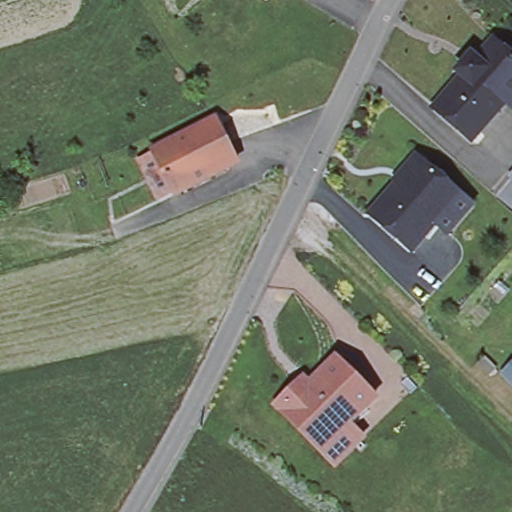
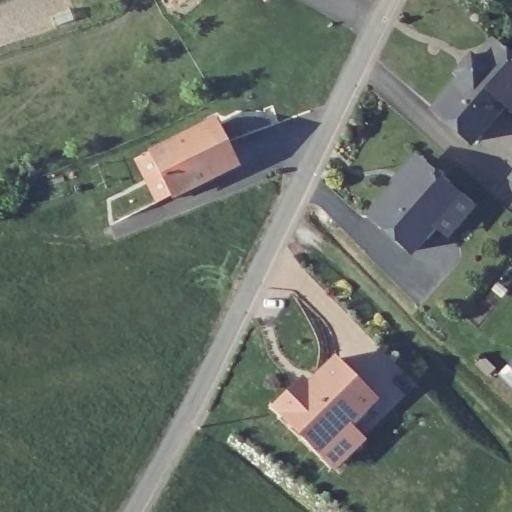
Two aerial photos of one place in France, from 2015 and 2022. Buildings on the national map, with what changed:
unchanged [(456,73),(472,56),(480,64),(497,44),(512,58),(512,108),(507,104),(472,143),(433,109),(461,77),(456,73)]
unchanged [(147,155),(217,120),(224,117),(245,159),(238,162),(167,197),(147,155)]
unchanged [(447,236),(435,226),(412,252),(370,216),(397,185),(393,182),(415,157),(422,164),(472,207),(447,236)]
unchanged [(508,180),(512,175),(512,183),(508,180)]
unchanged [(500,373),(512,362),(512,385),(500,373)]
unchanged [(335,470),(320,455),(277,410),(303,383),(309,390),(337,363),(375,402),(348,428),(362,443),(335,470)]

